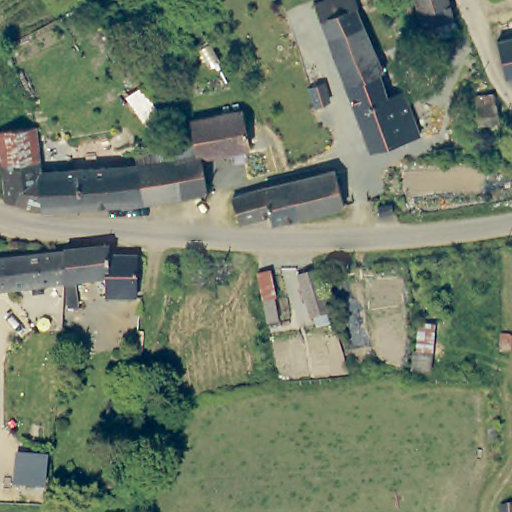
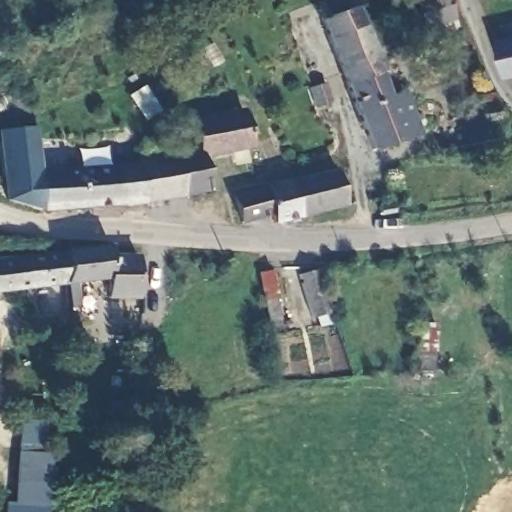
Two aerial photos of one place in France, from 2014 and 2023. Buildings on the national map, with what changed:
unchanged [(375,63),(374,70),(382,92),(385,91),(400,87),(415,127),(417,135),(364,150),(317,10),(315,2),(321,0),(357,0),(357,1),(354,5),(375,63)]
unchanged [(423,26),(415,2),(414,0),(444,0),(450,18),(423,26)]
unchanged [(512,78),(510,79),(496,40),(512,36),(512,78)]
unchanged [(311,102),(305,87),(304,85),(319,79),(326,97),(311,102)]
unchanged [(499,108),(495,125),(480,121),(483,105),(499,108)]
unchanged [(195,161),(191,139),(189,121),(239,115),(242,131),(254,132),(260,152),(199,161),(195,161)]
unchanged [(4,207),(0,164),(0,140),(30,135),(34,166),(40,218),(4,207)]
unchanged [(195,161),(170,165),(174,204),(140,208),(134,161),(148,161),(146,145),(185,140),(191,139),(195,161)]
unchanged [(134,161),(140,208),(116,211),(112,165),(134,161)]
unchanged [(199,161),(203,201),(174,204),(170,165),(195,161),(199,161)]
unchanged [(51,163),(55,172),(112,165),(116,211),(45,220),(40,218),(34,166),(51,163)]
unchanged [(340,176),(348,210),(306,218),(300,184),(340,176)]
unchanged [(230,199),(232,199),(245,196),(300,184),(306,218),(285,222),(283,218),(250,222),(250,217),(230,219),(230,202),(230,199)]
unchanged [(64,252),(71,252),(78,254),(105,250),(109,266),(132,262),(137,297),(114,302),(110,282),(61,289),(62,252),(64,252)]
unchanged [(26,261),(25,257),(62,252),(61,289),(0,298),(0,265),(26,261)]
unchanged [(285,268),(305,264),(317,305),(296,310),(285,268)]
new [(45,507),(46,512),(6,512),(7,503),(14,503),(11,432),(49,432),(45,507)]

